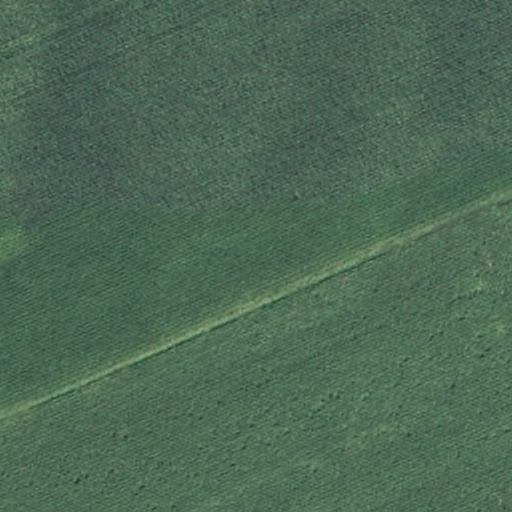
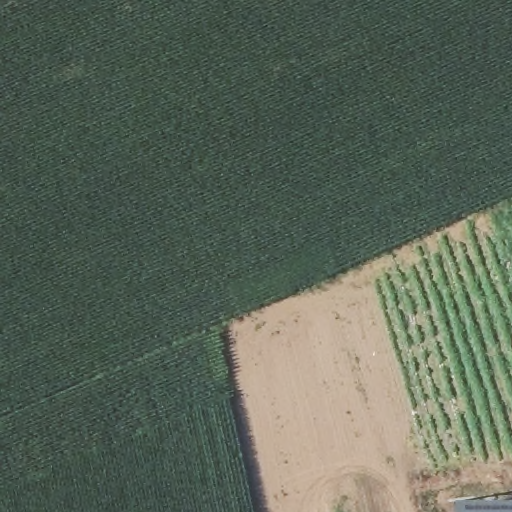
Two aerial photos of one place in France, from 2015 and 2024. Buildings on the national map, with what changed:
new [(478,498),(512,498),(512,512),(457,512),(457,500),(478,498)]

